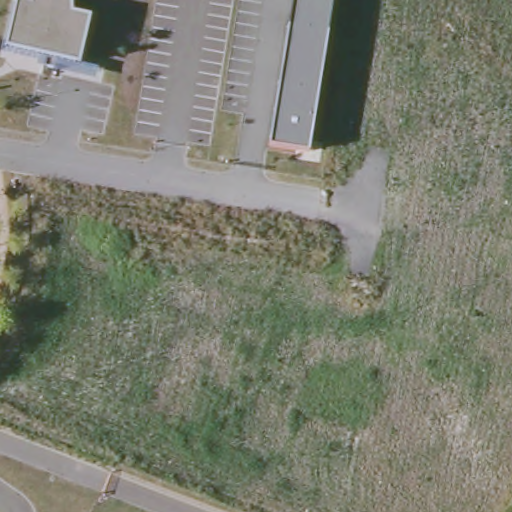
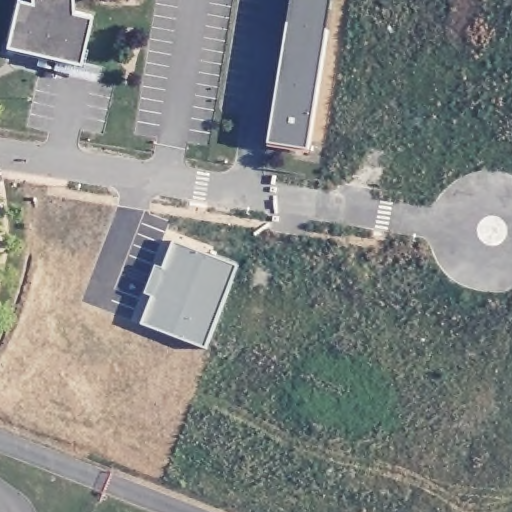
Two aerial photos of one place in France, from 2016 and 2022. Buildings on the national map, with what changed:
unchanged [(13,0),(72,0),(73,9),(89,13),(78,62),(3,44),(13,0)]
unchanged [(291,0),(332,0),(308,147),(267,140),(291,0)]
new [(178,239),(243,264),(211,348),(146,322),(178,239)]

